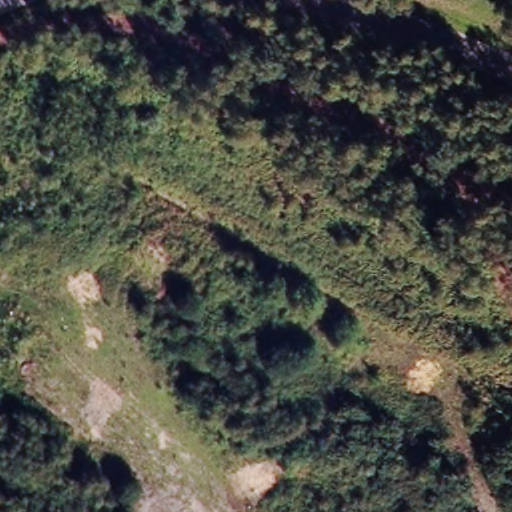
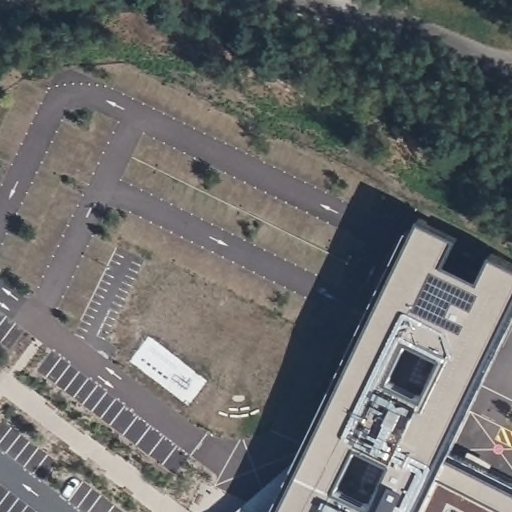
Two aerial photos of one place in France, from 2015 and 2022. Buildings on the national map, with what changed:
new [(512,512),(470,512),(459,507),(456,512),(236,512),(293,463),(301,464),(423,217),(460,236),(447,261),(482,279),(495,253),(512,262),(512,312),(443,456),(512,488),(512,512)]

